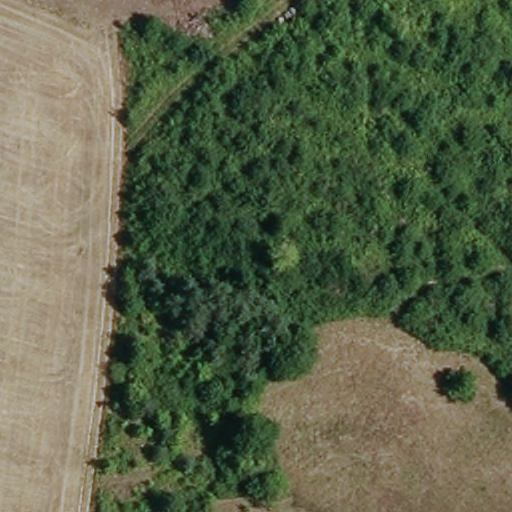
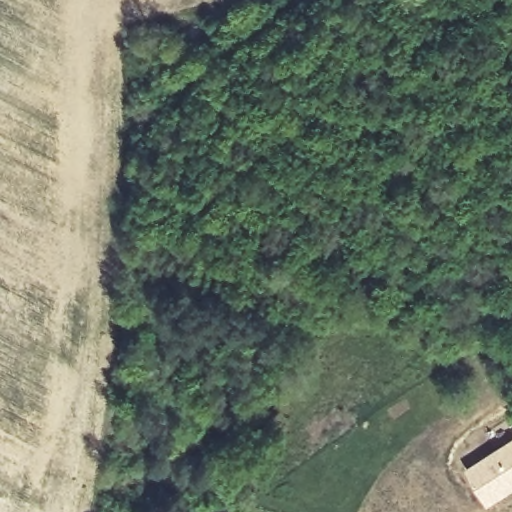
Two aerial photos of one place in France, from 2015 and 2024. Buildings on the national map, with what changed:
new [(512,437),(512,492),(488,505),(463,467),(512,437)]

